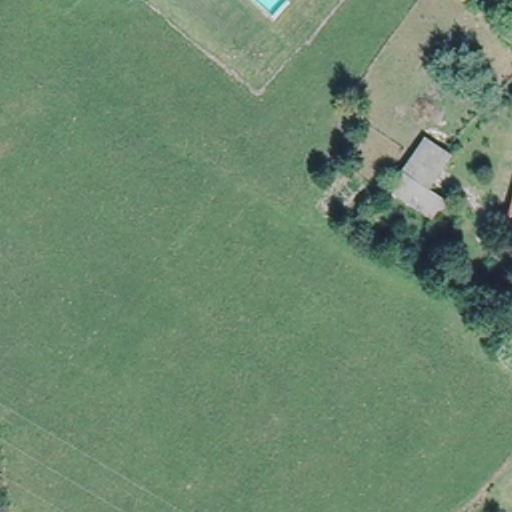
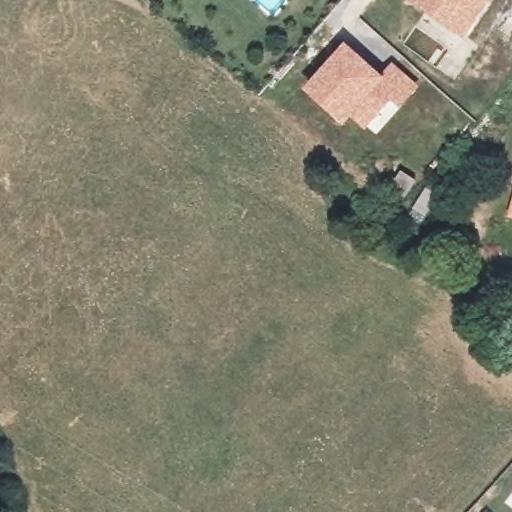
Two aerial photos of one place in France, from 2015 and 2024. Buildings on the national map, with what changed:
new [(462,34),(415,0),(483,0),(486,2),(462,34)]
new [(346,47),(382,80),(393,68),(414,87),(400,103),(391,96),(365,124),(351,112),(346,117),(328,101),(326,104),(308,88),(346,47)]
unchanged [(390,189),(425,137),(448,153),(450,154),(428,189),(447,202),(433,219),(407,200),(390,189)]
unchanged [(512,199),(512,215),(508,214),(512,199)]

